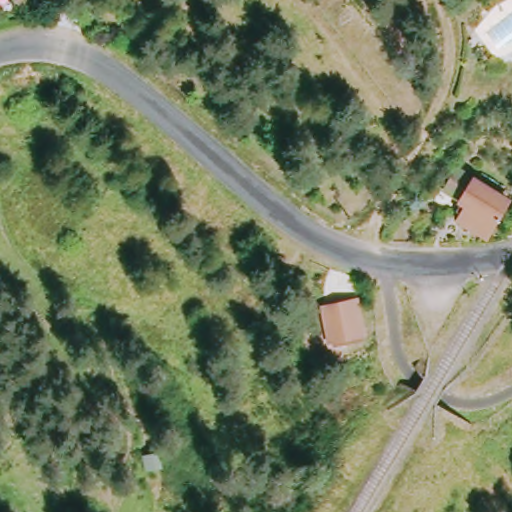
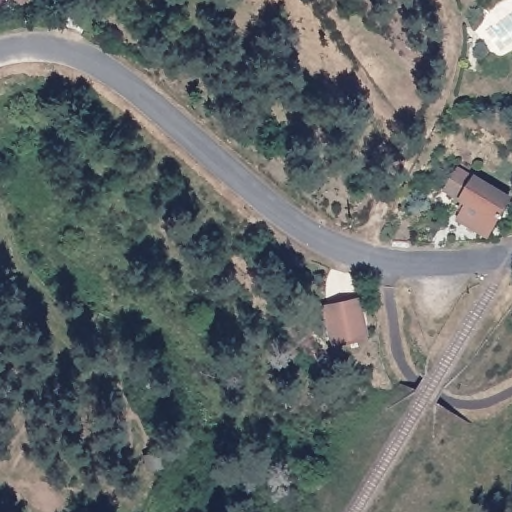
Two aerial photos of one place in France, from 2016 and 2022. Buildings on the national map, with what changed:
unchanged [(0,0),(16,0),(10,10),(0,2),(0,0)]
unchanged [(452,219),(460,202),(436,185),(447,166),(506,199),(486,235),(479,236),(452,219)]
unchanged [(367,335),(334,343),(326,312),(358,302),(367,335)]

